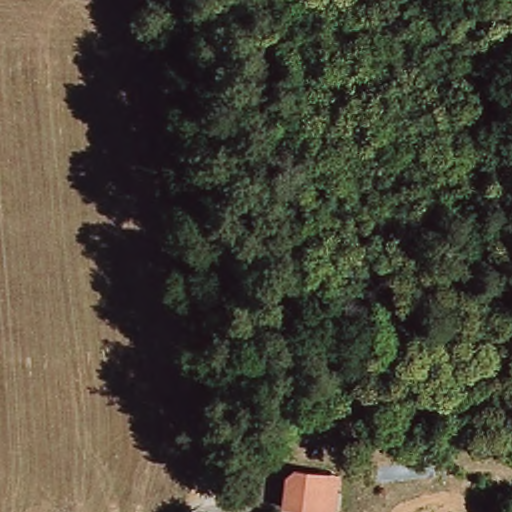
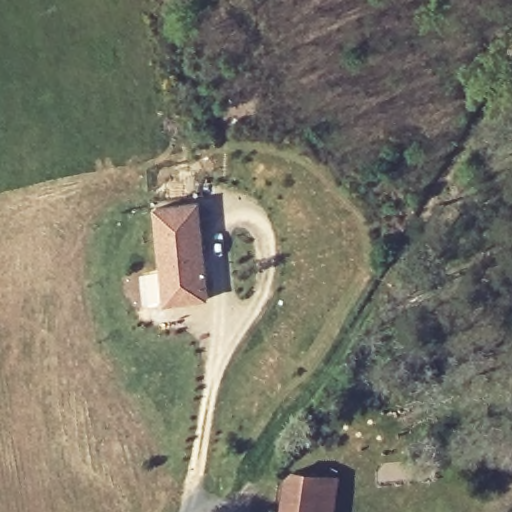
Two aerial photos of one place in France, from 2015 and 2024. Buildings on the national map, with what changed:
new [(155,208),(198,203),(210,301),(166,305),(155,208)]
unchanged [(341,487),(336,512),(289,512),(293,483),(341,487)]

